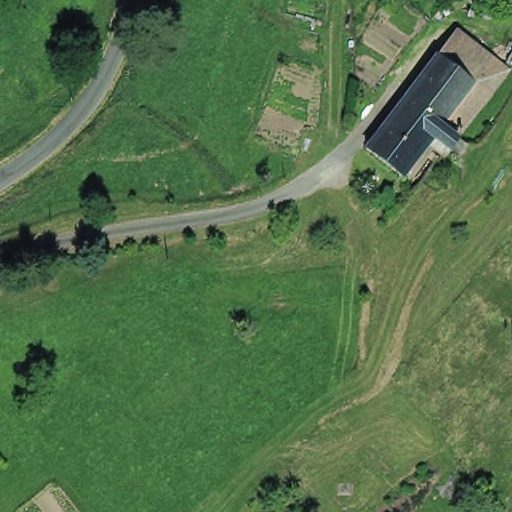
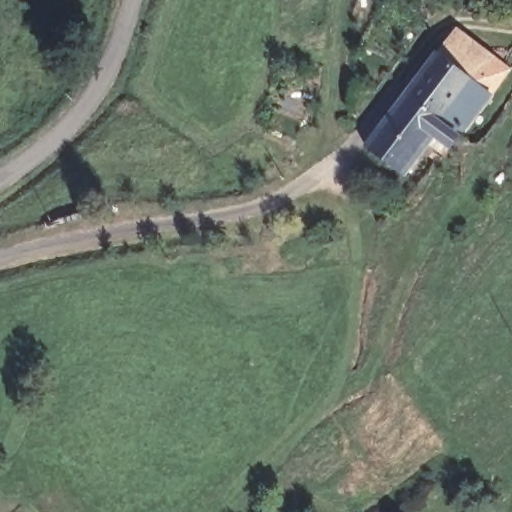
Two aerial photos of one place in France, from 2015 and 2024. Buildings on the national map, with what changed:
unchanged [(462,19),(512,59),(451,135),(436,123),(476,72),(442,46),(462,19)]
unchanged [(436,123),(432,128),(392,98),(436,41),(442,46),(476,72),(436,123)]
unchanged [(404,166),(364,135),(392,98),(432,128),(404,166)]

